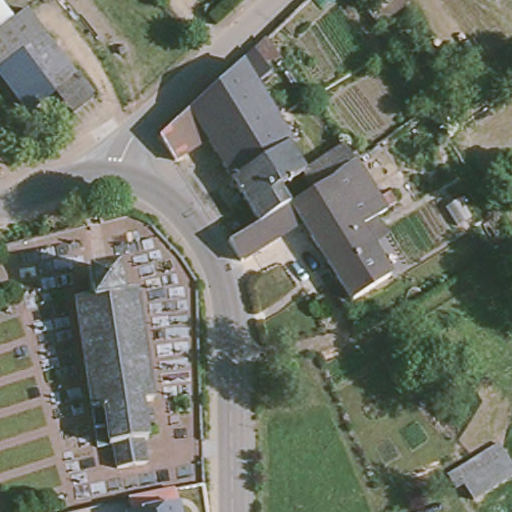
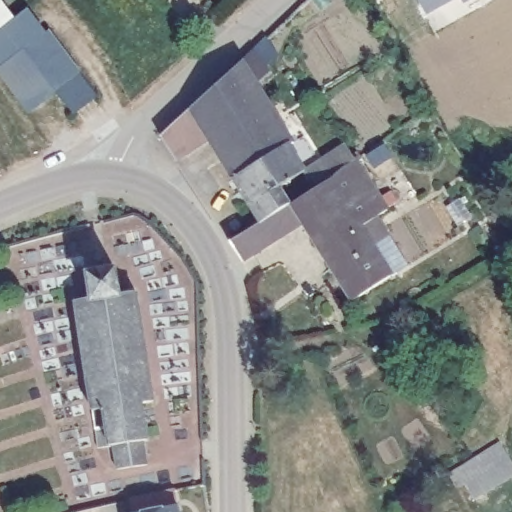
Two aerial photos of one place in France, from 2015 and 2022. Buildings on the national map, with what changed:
unchanged [(25,51),(2,70),(0,71),(0,0),(4,0),(17,17),(25,12),(45,35),(25,51)]
new [(425,14),(418,0),(449,0),(425,14)]
new [(462,2),(461,0),(466,0),(462,2)]
unchanged [(78,74),(57,90),(25,51),(45,35),(78,74)]
unchanged [(34,109),(2,70),(25,51),(57,90),(34,109)]
unchanged [(166,136),(198,108),(202,114),(227,99),(219,89),(247,61),(272,100),(299,141),(295,144),(272,158),(237,179),(214,140),(182,160),(166,136)]
unchanged [(82,70),(102,96),(78,115),(57,90),(78,74),(82,70)]
unchanged [(237,179),(272,158),(295,144),(310,169),(284,185),(295,201),(272,217),(264,222),(237,179)]
unchanged [(295,201),(297,200),(334,176),(360,159),(393,209),(367,226),(370,232),(330,256),(307,224),(272,246),(247,261),(235,242),(264,222),(272,217),(295,201)]
unchanged [(370,232),(397,275),(358,300),(330,256),(370,232)]
unchanged [(97,293),(94,270),(122,266),(125,290),(142,287),(159,397),(148,398),(152,435),(149,436),(152,459),(122,464),(118,440),(104,441),(82,296),(97,293)]
unchanged [(457,471),(505,438),(512,450),(512,485),(474,507),(457,471)]
unchanged [(183,512),(129,512),(181,500),(183,512)]

